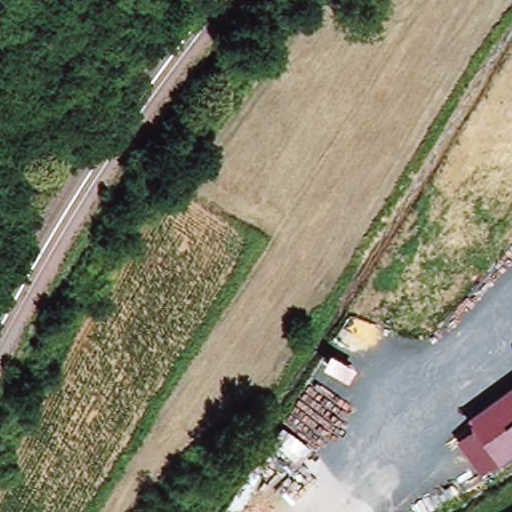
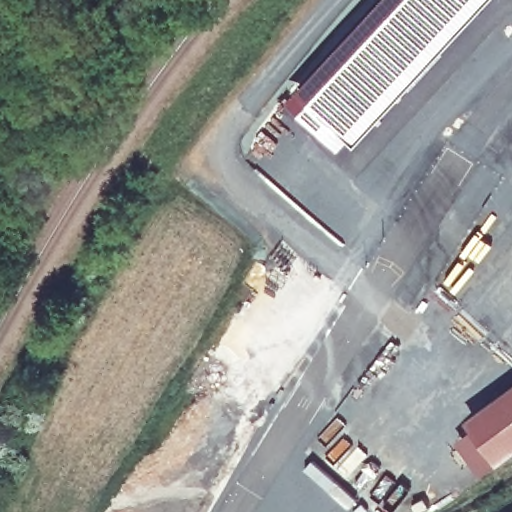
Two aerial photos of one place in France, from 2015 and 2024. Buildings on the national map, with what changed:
new [(399,0),(308,96),(311,98),(307,102),(302,101),(298,105),(290,97),(381,0),(399,0)]
new [(490,0),(355,144),(332,122),(311,98),(308,96),(399,0),(490,0)]
unchanged [(473,433),(512,405),(512,454),(497,465),(473,433)]

